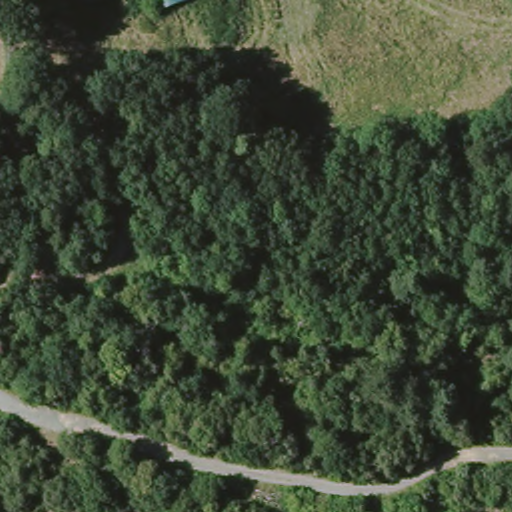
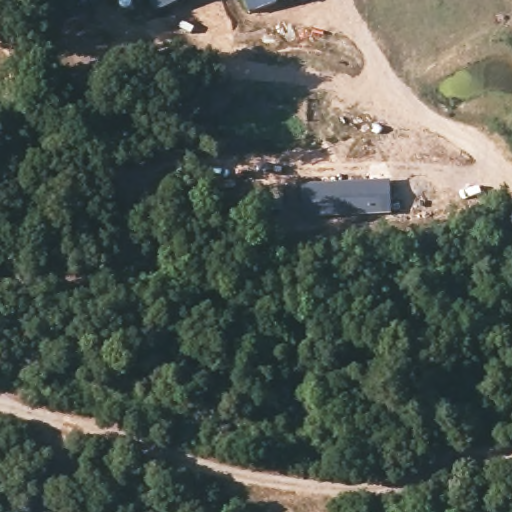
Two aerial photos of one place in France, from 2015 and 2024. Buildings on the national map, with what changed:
unchanged [(75,0),(97,0),(77,7),(75,0)]
unchanged [(153,0),(189,0),(156,10),(153,0)]
new [(246,0),(288,0),(250,12),(246,0)]
new [(390,182),(392,214),(304,218),(304,186),(390,182)]

